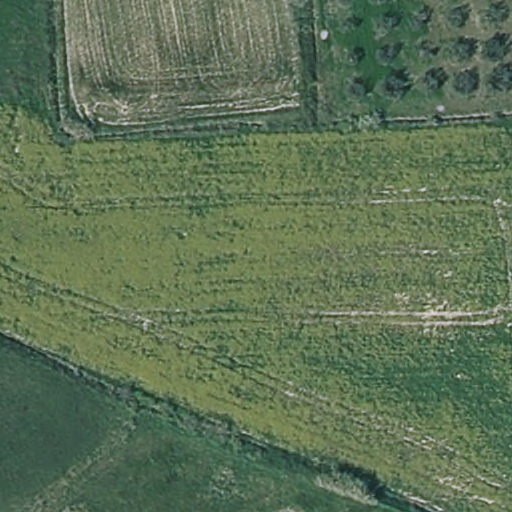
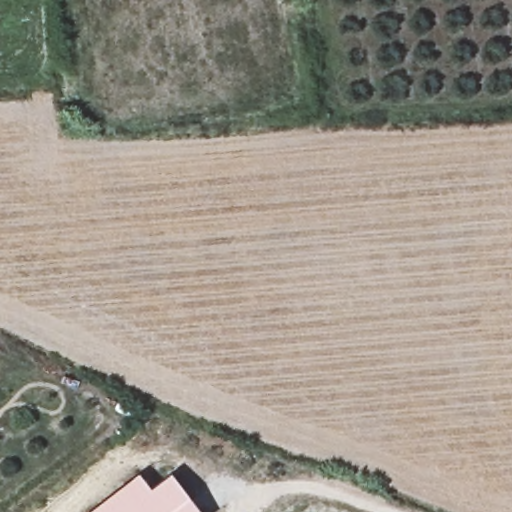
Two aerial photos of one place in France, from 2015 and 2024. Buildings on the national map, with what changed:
new [(148,488),(168,472),(199,512),(87,512),(138,473),(148,488)]

